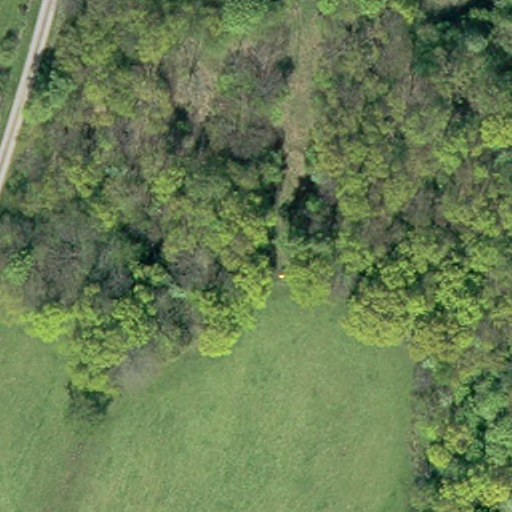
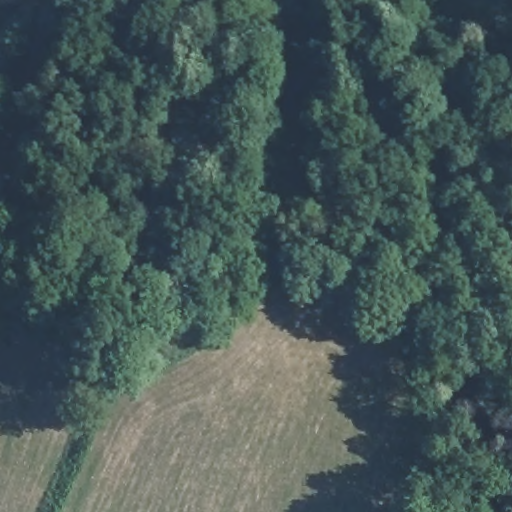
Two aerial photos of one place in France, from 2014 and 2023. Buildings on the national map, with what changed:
[]

